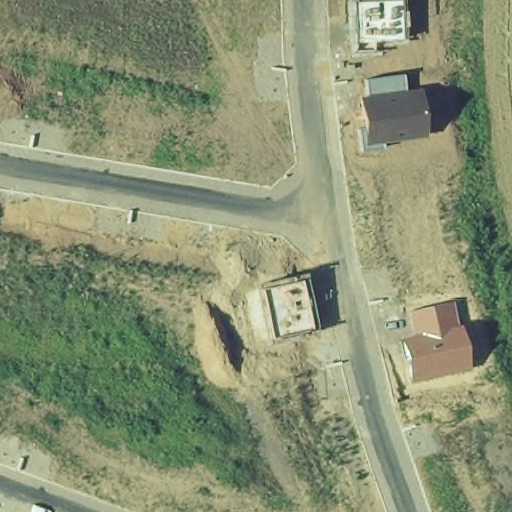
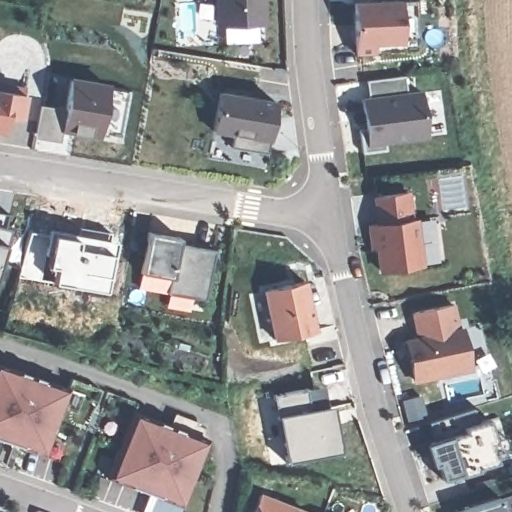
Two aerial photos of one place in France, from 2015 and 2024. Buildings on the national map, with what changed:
new [(216,0),(266,0),(268,26),(217,28),(216,0)]
unchanged [(378,42),(378,55),(353,55),(351,41),(350,0),(404,0),(406,41),(378,42)]
unchanged [(406,76),(408,91),(422,89),(431,137),(386,144),(387,149),(365,151),(365,148),(362,131),(368,129),(363,96),(364,96),(368,96),(366,81),(406,76)]
new [(98,138),(63,134),(60,145),(38,140),(44,105),(63,108),(70,78),(108,83),(98,138)]
new [(0,85),(25,89),(20,118),(6,116),(5,125),(4,132),(0,131),(0,85)]
new [(233,146),(234,136),(211,133),(218,91),(275,100),(268,141),(266,153),(233,146)]
new [(378,224),(374,197),(406,193),(410,220),(414,220),(420,266),(381,272),(378,249),(371,250),(368,226),(378,224)]
new [(5,227),(10,229),(6,245),(0,267),(0,212),(9,214),(5,227)]
new [(29,229),(68,230),(73,230),(75,227),(105,232),(116,234),(105,293),(18,277),(29,229)]
new [(173,293),(174,277),(143,273),(148,235),(179,239),(178,247),(216,251),(207,298),(173,293)]
unchanged [(307,277),(320,333),(276,342),(264,287),(307,277)]
unchanged [(454,302),(459,326),(463,325),(474,371),(416,384),(404,338),(417,336),(413,312),(454,302)]
new [(0,364),(71,387),(48,456),(0,442),(0,364)]
new [(323,385),(326,406),(331,405),(343,452),(288,464),(277,417),(273,396),(323,385)]
new [(477,421),(487,418),(488,419),(496,416),(510,456),(497,460),(497,462),(478,468),(479,470),(461,476),(460,474),(442,480),(429,442),(434,440),(428,422),(472,407),(477,421)]
new [(184,508),(108,480),(134,412),(211,438),(184,508)]
new [(258,494),(304,512),(251,512),(258,494)]
new [(499,499),(504,512),(464,512),(499,499)]

